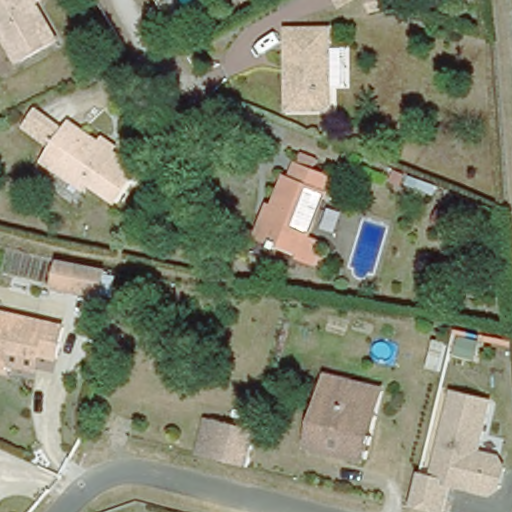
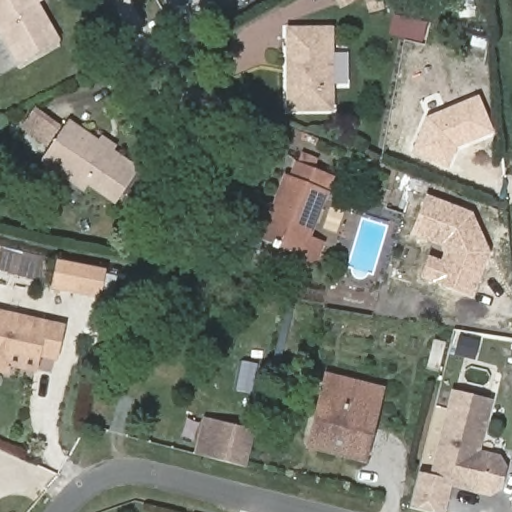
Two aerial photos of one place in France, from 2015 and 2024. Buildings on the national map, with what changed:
unchanged [(0,11),(0,0),(43,0),(63,35),(27,58),(0,11)]
unchanged [(287,27),(327,24),(331,102),(291,105),(287,27)]
new [(424,117),(477,97),(492,134),(456,148),(447,170),(409,156),(424,117)]
unchanged [(138,171),(116,204),(90,187),(86,193),(70,182),(67,170),(59,164),(62,159),(53,152),(70,125),(99,144),(111,152),(138,171)]
unchanged [(272,202),(279,205),(290,176),(296,175),(302,160),(334,172),(311,232),(325,238),(316,261),(301,256),(302,252),(267,238),(259,236),(272,202)]
new [(428,256),(441,261),(443,256),(440,247),(410,236),(426,196),(472,213),(489,254),(472,299),(419,279),(428,256)]
new [(97,297),(72,292),(53,288),(58,262),(78,266),(102,270),(97,297)]
unchanged [(63,327),(55,358),(8,349),(3,369),(0,369),(0,313),(63,327)]
unchanged [(377,385),(367,429),(361,456),(305,443),(312,417),(323,373),(334,376),(368,382),(377,385)]
unchanged [(503,455),(509,467),(502,491),(491,498),(452,488),(446,512),(429,512),(411,507),(419,473),(431,476),(452,390),(494,400),(481,450),(503,455)]
unchanged [(195,457),(203,421),(210,422),(233,427),(252,432),(251,437),(245,468),(202,459),(195,457)]

